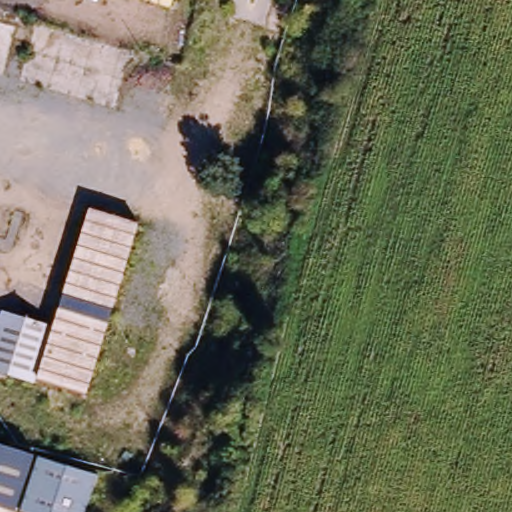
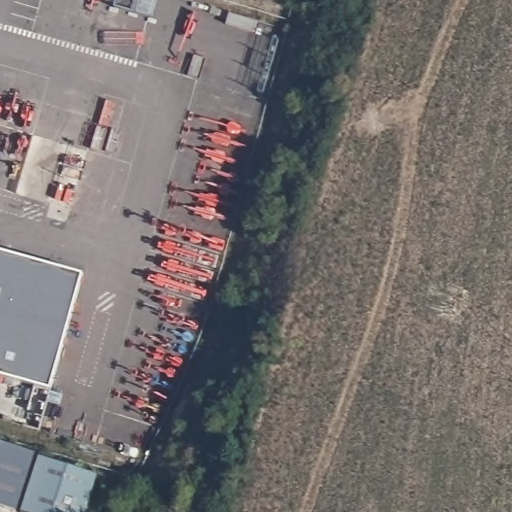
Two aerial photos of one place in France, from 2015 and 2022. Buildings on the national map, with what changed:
demolished [(137,217),(86,402),(41,388),(57,332),(91,207),(137,217)]
new [(83,273),(51,387),(0,373),(0,250),(83,273)]
demolished [(0,378),(0,315),(57,332),(41,388),(0,378)]
unchanged [(95,475),(84,512),(20,512),(0,505),(0,444),(95,475)]

